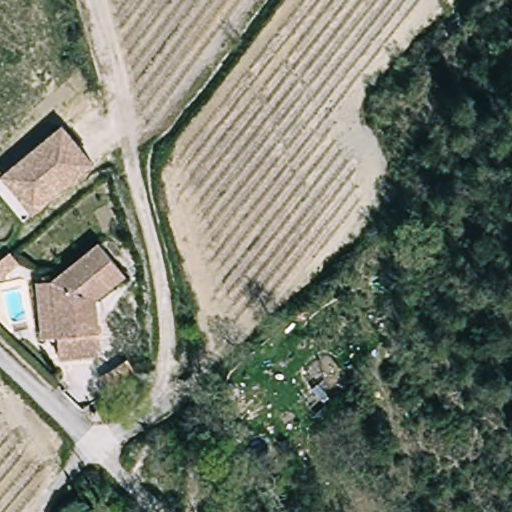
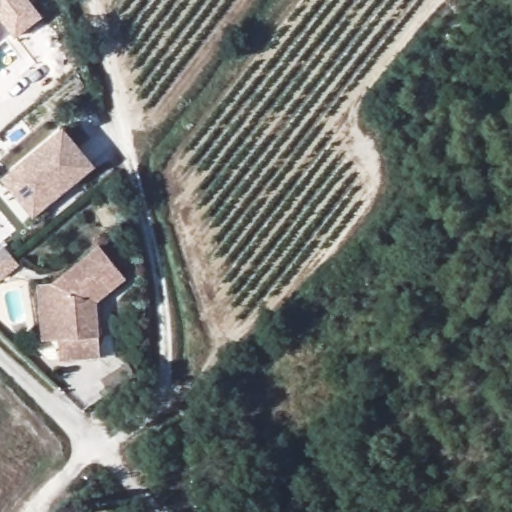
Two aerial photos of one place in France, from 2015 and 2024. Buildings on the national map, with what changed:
new [(0,19),(0,0),(30,0),(43,15),(15,37),(0,19)]
unchanged [(1,181),(11,173),(58,130),(90,165),(43,208),(34,216),(1,181)]
unchanged [(36,286),(51,285),(95,245),(123,274),(93,302),(96,358),(56,360),(55,340),(40,340),(36,286)]

